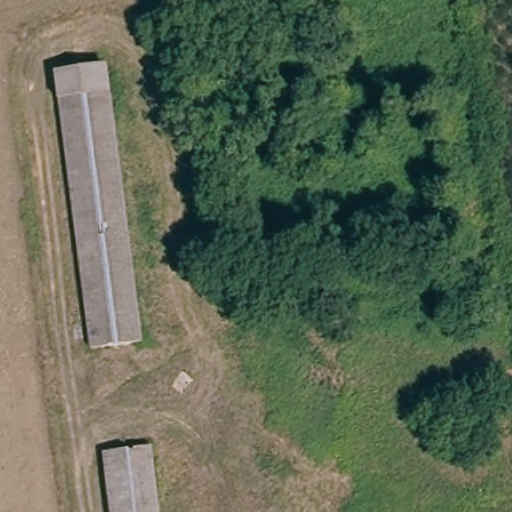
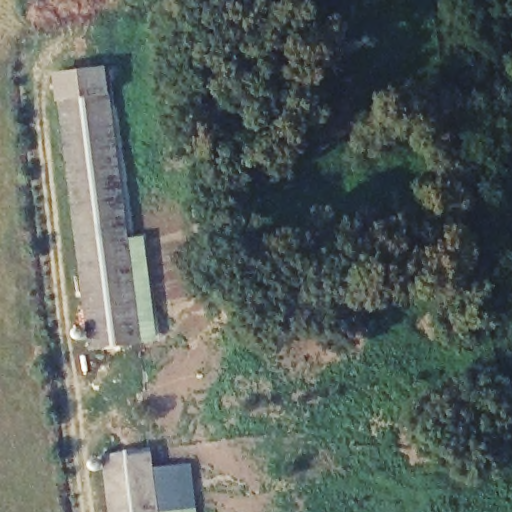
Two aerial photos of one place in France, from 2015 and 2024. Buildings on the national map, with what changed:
unchanged [(62,75),(112,69),(147,344),(97,349),(62,75)]
unchanged [(150,448),(158,512),(112,512),(105,454),(150,448)]
new [(199,512),(158,512),(152,467),(193,462),(199,512)]

